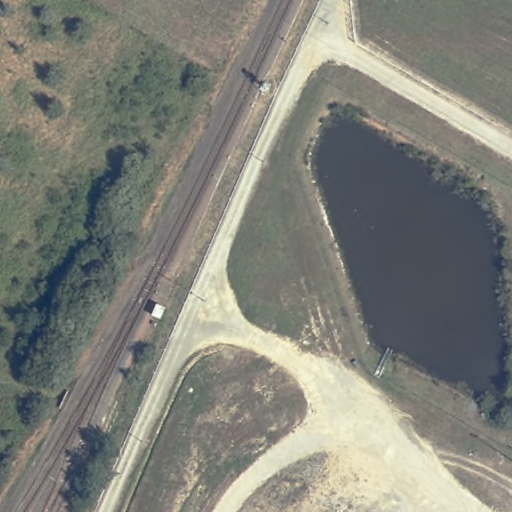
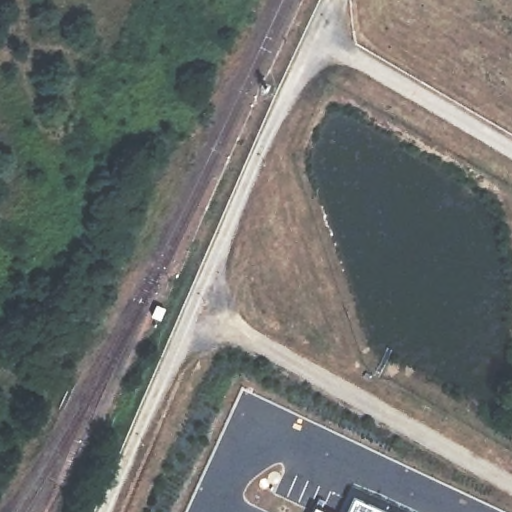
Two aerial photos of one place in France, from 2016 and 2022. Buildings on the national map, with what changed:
new [(352,494),(391,512),(343,512),(352,494)]
new [(312,505),(328,512),(308,512),(312,505)]

